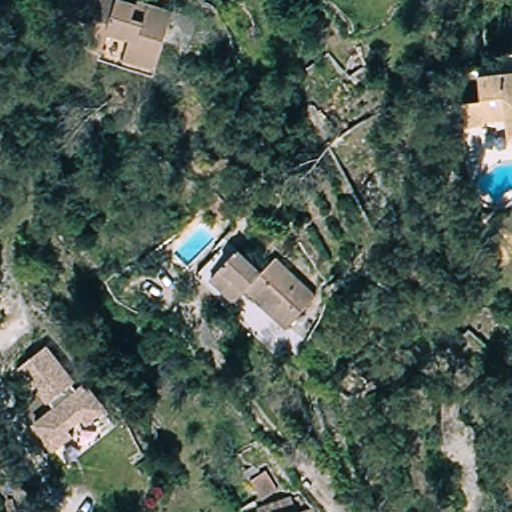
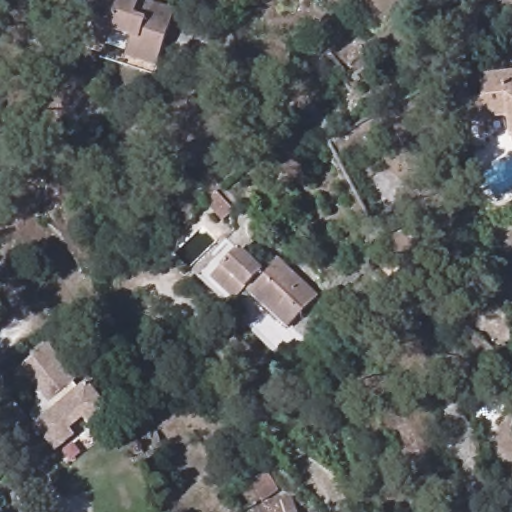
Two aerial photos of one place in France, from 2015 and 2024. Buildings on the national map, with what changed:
unchanged [(140,2),(174,12),(155,72),(122,62),(123,59),(83,46),(90,27),(61,17),(67,0),(124,0),(138,5),(140,2)]
unchanged [(466,87),(494,74),(495,74),(512,72),(512,140),(510,141),(507,119),(487,121),(487,124),(451,127),(450,106),(448,94),(466,87)]
unchanged [(290,327),(277,338),(237,296),(222,314),(187,278),(218,247),(251,282),(267,267),(309,308),(290,327)]
unchanged [(74,382),(72,385),(77,392),(85,386),(105,410),(86,425),(82,419),(67,431),(72,436),(55,451),(35,426),(59,407),(45,388),(37,395),(17,371),(46,347),(74,382)]
unchanged [(242,485),(256,476),(268,494),(252,506),(242,485)]
unchanged [(247,512),(282,500),(286,512),(247,512)]

